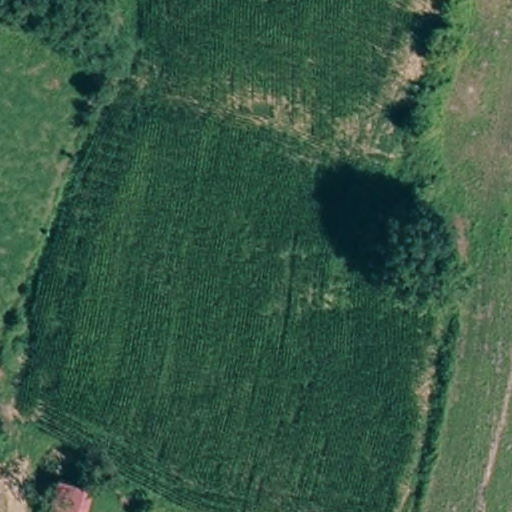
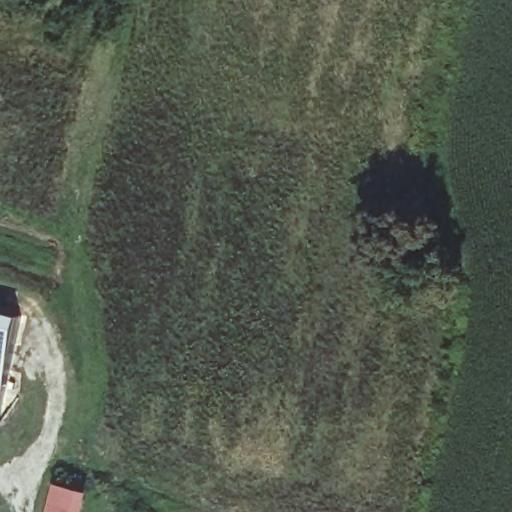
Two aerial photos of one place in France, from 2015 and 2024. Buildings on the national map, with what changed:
new [(26,314),(0,415),(0,307),(26,314)]
unchanged [(51,512),(59,483),(96,492),(89,512),(51,512)]

